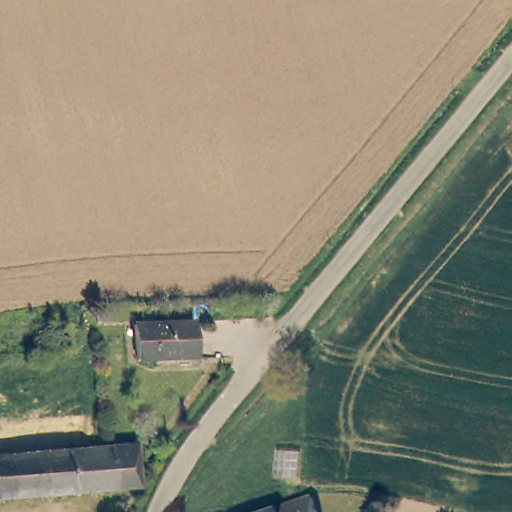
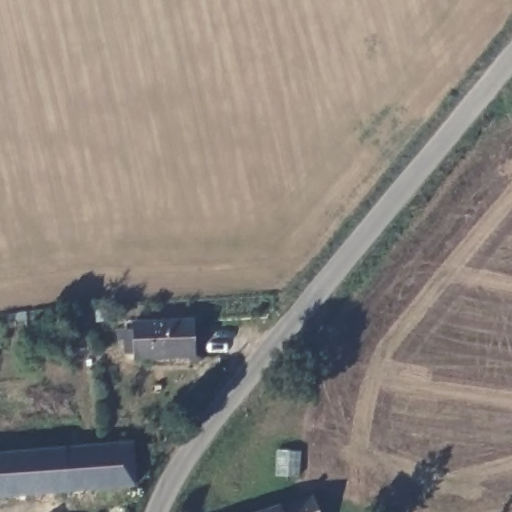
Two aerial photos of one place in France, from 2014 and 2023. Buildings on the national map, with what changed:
unchanged [(193,356),(133,359),(131,321),(192,320),(193,356)]
unchanged [(129,487),(9,497),(0,498),(0,455),(127,444),(129,487)]
unchanged [(311,500),(316,512),(280,512),(311,500)]

